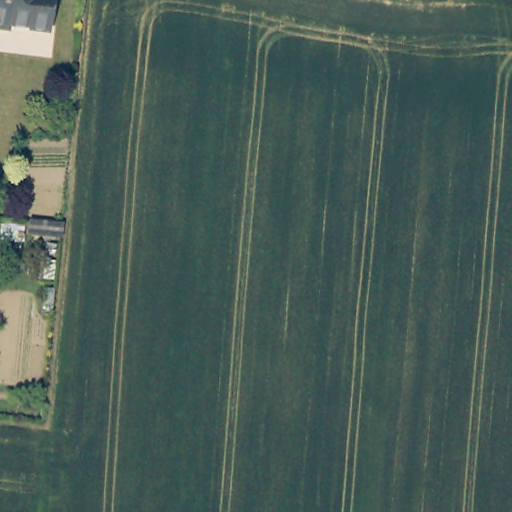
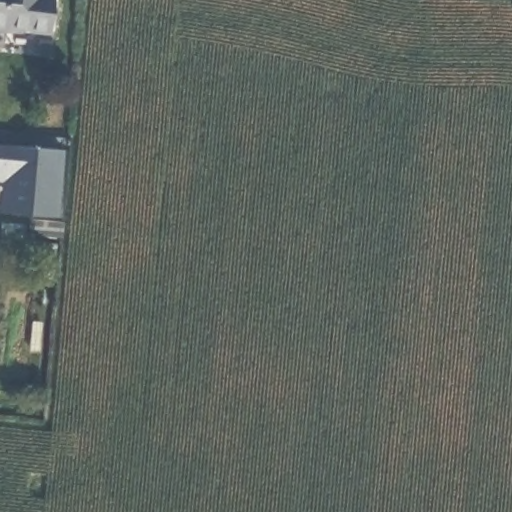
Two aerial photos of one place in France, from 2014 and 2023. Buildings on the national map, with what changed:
unchanged [(51,6),(47,6),(45,28),(7,27),(7,31),(0,30),(0,0),(52,0),(51,6)]
new [(57,216),(0,213),(0,207),(2,181),(0,181),(0,144),(64,149),(57,216)]
unchanged [(56,226),(55,242),(21,239),(21,222),(56,226)]

